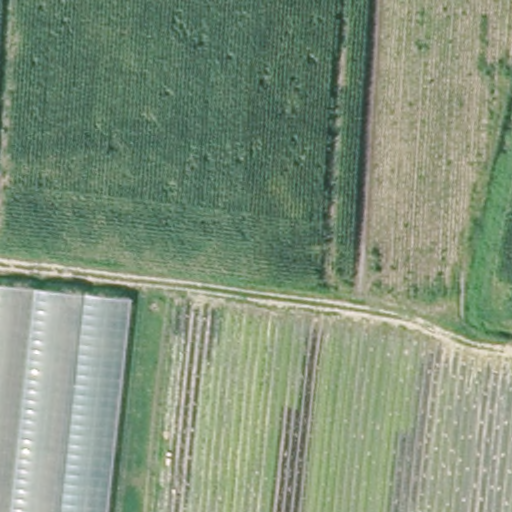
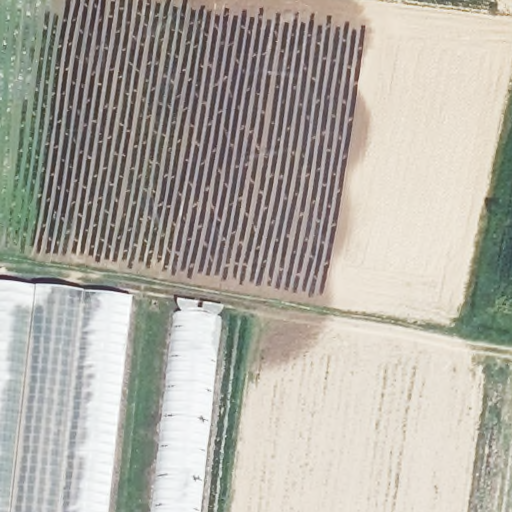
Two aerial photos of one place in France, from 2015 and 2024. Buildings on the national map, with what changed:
unchanged [(104,512),(0,512),(0,284),(129,299),(104,512)]
new [(160,438),(172,312),(220,317),(201,495),(199,512),(150,512),(160,438)]

